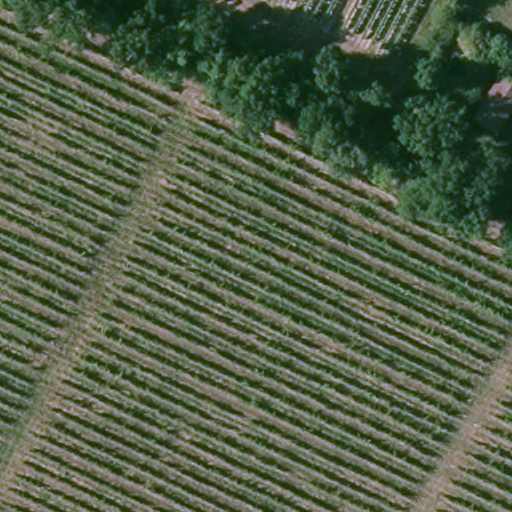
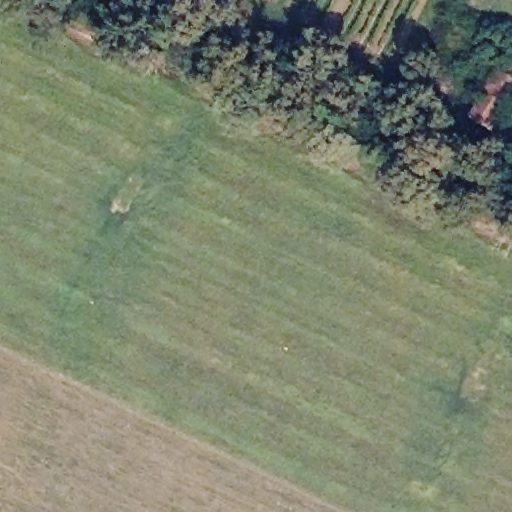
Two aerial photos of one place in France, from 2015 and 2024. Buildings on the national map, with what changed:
unchanged [(506,135),(472,122),(511,42),(512,43),(512,118),(506,135)]

